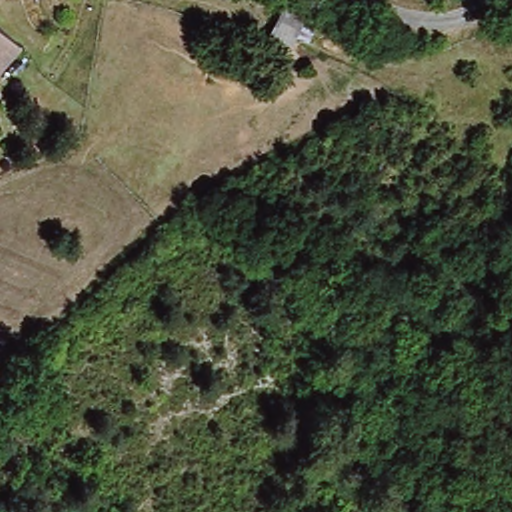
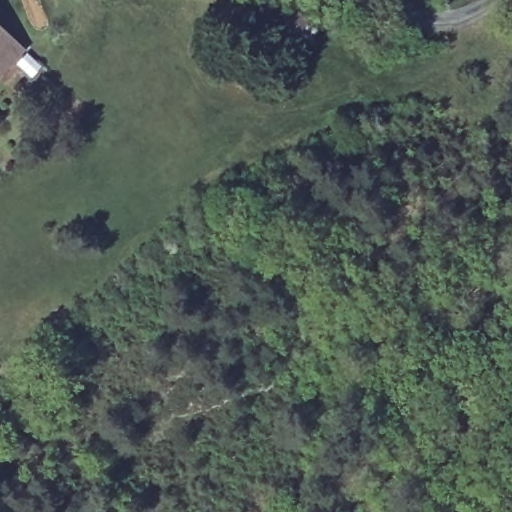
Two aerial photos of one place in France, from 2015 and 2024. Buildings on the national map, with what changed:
unchanged [(28,52),(4,81),(0,77),(0,27),(28,52)]

